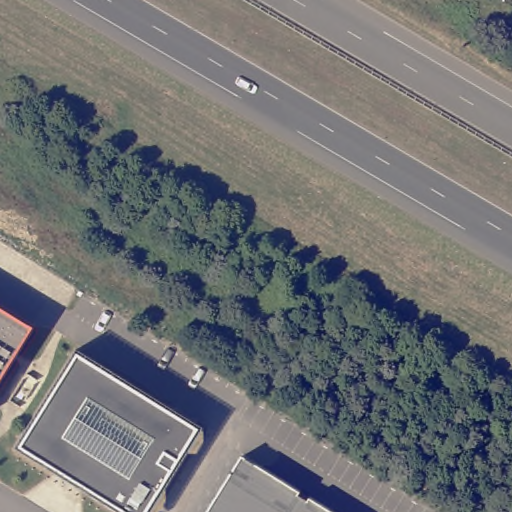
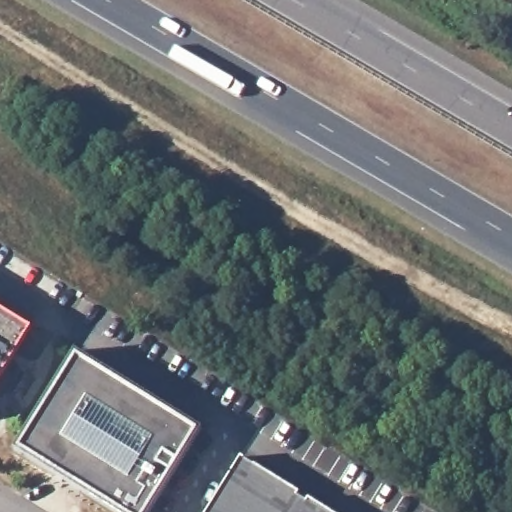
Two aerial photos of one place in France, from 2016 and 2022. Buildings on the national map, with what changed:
unchanged [(29,329),(0,376),(0,312),(29,329)]
unchanged [(149,512),(119,512),(16,448),(75,352),(200,428),(149,512)]
unchanged [(299,492),(308,498),(331,512),(206,512),(240,456),(299,492)]

